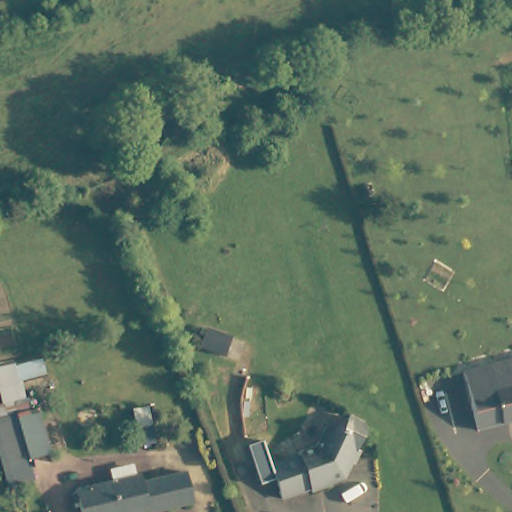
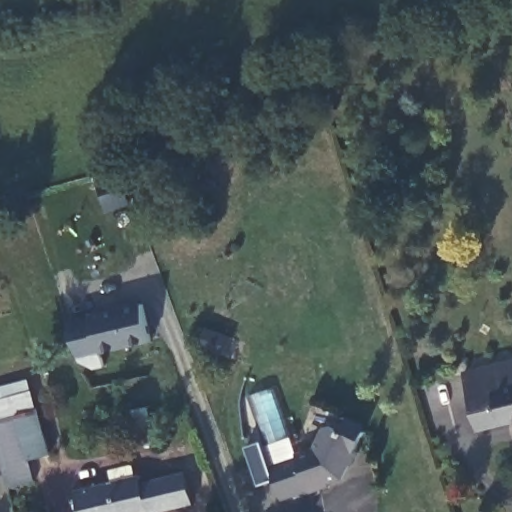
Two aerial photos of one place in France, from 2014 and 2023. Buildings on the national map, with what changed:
new [(104,366),(95,368),(82,362),(81,358),(69,321),(91,314),(142,302),(152,341),(102,352),(104,366)]
new [(210,321),(234,328),(228,347),(204,339),(210,321)]
unchanged [(512,423),(483,432),(466,373),(512,359),(512,423)]
unchanged [(24,418),(0,425),(0,386),(30,379),(32,390),(37,408),(39,407),(41,413),(24,418)]
unchanged [(44,412),(57,457),(37,463),(24,418),(44,412)]
unchanged [(24,418),(37,463),(42,484),(16,492),(0,438),(0,425),(24,418)]
unchanged [(251,486),(237,447),(252,442),(262,467),(290,456),(287,449),(311,440),(322,421),(342,432),(347,421),(365,431),(352,455),(355,457),(346,472),(339,468),(335,477),(321,481),(323,489),(303,495),(302,488),(273,499),(267,480),(251,486)]
unchanged [(15,486),(8,487),(0,459),(0,438),(15,486)]
unchanged [(77,508),(71,510),(68,497),(74,496),(73,493),(112,483),(110,473),(127,468),(130,479),(137,477),(140,484),(184,473),(191,502),(152,512),(77,512),(77,508)]

